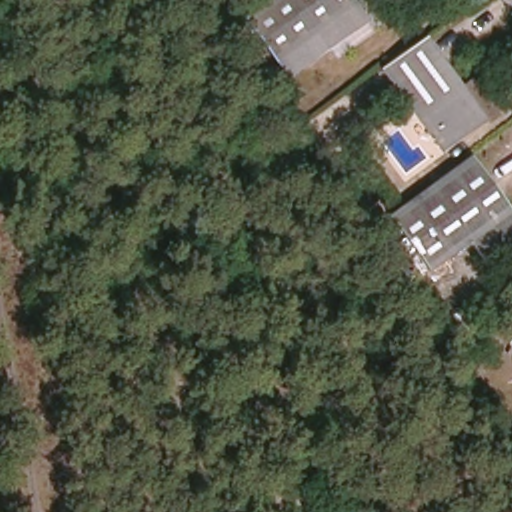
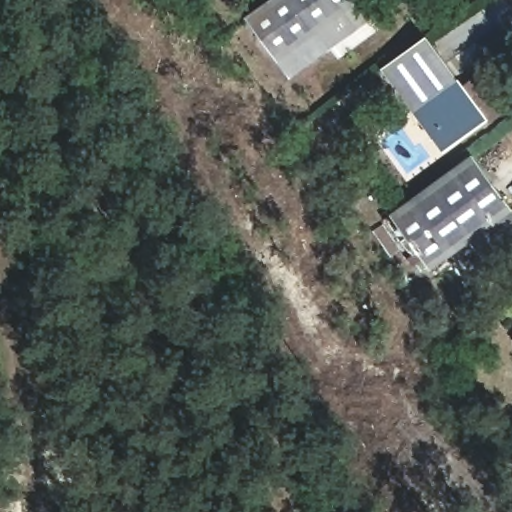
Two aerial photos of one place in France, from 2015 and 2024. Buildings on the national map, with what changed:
unchanged [(360,0),(375,21),(335,51),(323,36),(282,65),(247,19),(272,0),(360,0)]
unchanged [(496,116),(486,124),(482,119),(446,146),(387,70),(426,40),(459,86),(468,80),(496,116)]
unchanged [(512,213),(512,241),(483,262),(469,241),(428,272),(387,216),(469,155),(512,213)]

